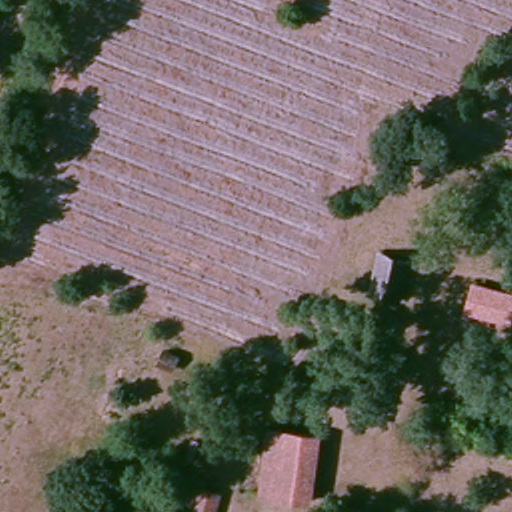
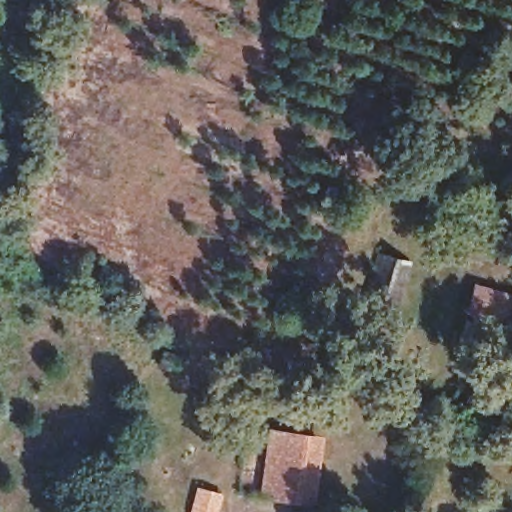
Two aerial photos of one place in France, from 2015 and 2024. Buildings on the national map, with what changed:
unchanged [(411,256),(399,307),(371,300),(383,250),(411,256)]
unchanged [(512,324),(510,329),(467,317),(476,281),(512,290),(512,324)]
unchanged [(315,432),(304,505),(269,500),(280,426),(315,432)]
unchanged [(220,512),(188,512),(193,485),(225,491),(220,512)]

